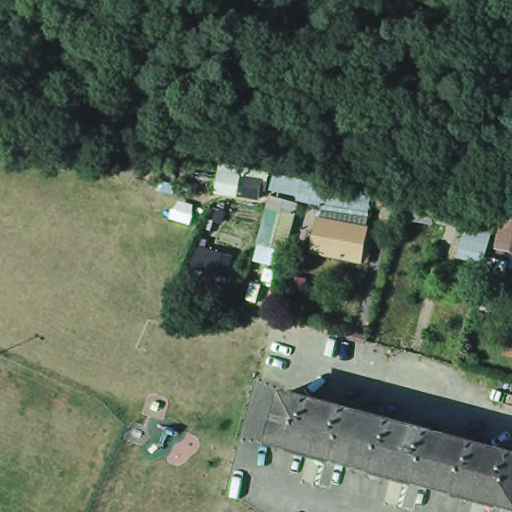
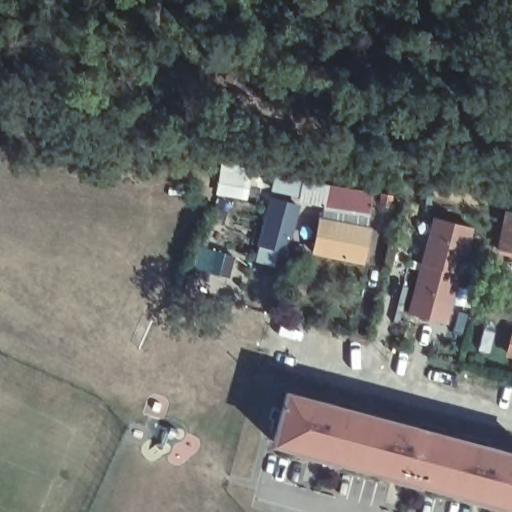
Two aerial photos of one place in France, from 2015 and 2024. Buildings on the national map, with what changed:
unchanged [(325,201),(323,200),(323,199),(303,194),(300,194),(303,180),(307,180),(326,184),(369,191),(366,225),(322,214),(325,201)]
unchanged [(285,246),(258,239),(268,205),(278,207),(281,199),(293,202),(292,209),(293,209),(292,211),(294,212),(285,246)]
unchanged [(512,202),(512,233),(501,231),(509,201),(512,202)]
demolished [(433,207),(430,222),(406,218),(409,203),(433,207)]
demolished [(465,248),(465,246),(469,232),(475,212),(497,219),(487,255),(465,248)]
unchanged [(365,260),(360,258),(311,245),(320,214),(322,214),(366,225),(369,226),(374,227),(365,260)]
new [(472,225),(446,325),(407,313),(431,216),(472,225)]
unchanged [(485,290),(495,292),(491,308),(480,305),(485,290)]
new [(506,356),(512,333),(512,358),(506,356)]
unchanged [(280,440),(293,392),(378,415),(365,463),(280,440)]
unchanged [(458,437),(445,485),(365,463),(378,415),(458,437)]
unchanged [(512,452),(512,504),(445,485),(458,437),(512,452)]

